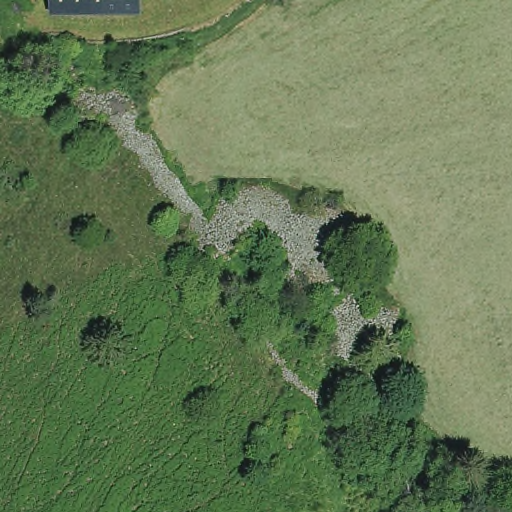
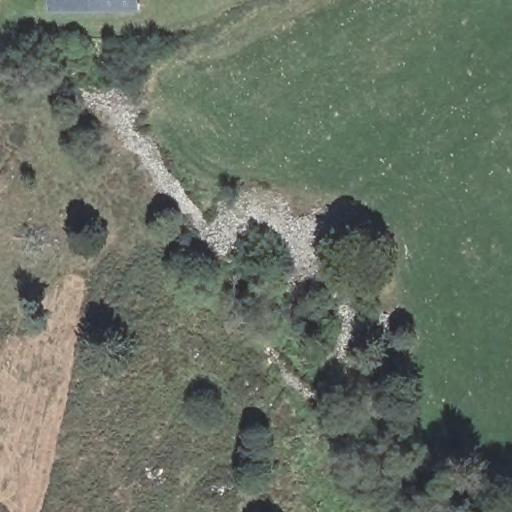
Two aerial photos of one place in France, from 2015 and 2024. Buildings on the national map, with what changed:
unchanged [(107,0),(106,16),(54,15),(54,0),(107,0)]
unchanged [(106,16),(107,0),(138,0),(138,16),(106,16)]

